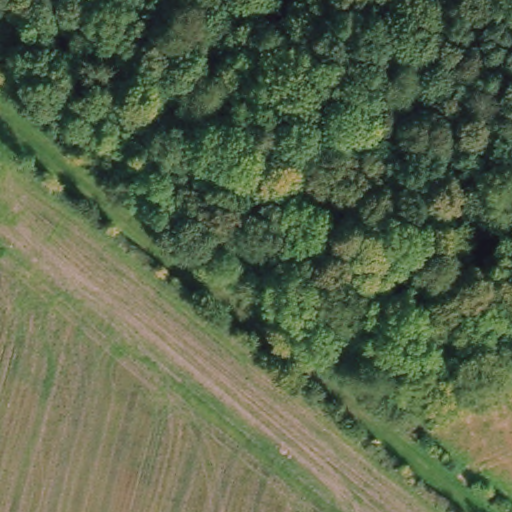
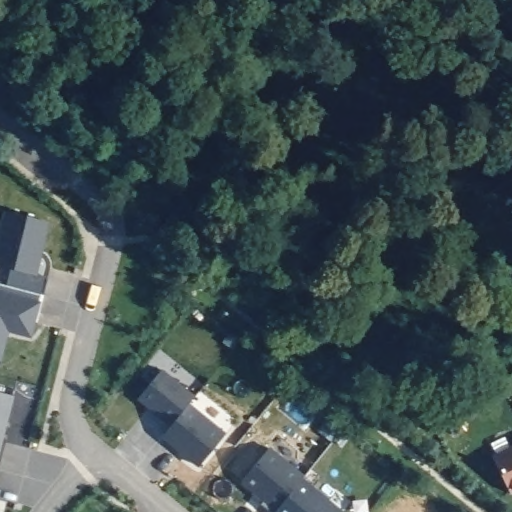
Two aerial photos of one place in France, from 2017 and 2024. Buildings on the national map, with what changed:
new [(42,228),(48,229),(39,269),(32,268),(31,274),(0,267),(0,226),(3,216),(15,214),(44,221),(42,228)]
new [(38,302),(29,335),(3,329),(1,334),(5,335),(0,353),(0,292),(38,302)]
new [(193,396),(170,424),(137,397),(161,369),(193,396)]
new [(12,395),(4,425),(1,424),(0,427),(0,392),(12,395)]
new [(161,435),(187,404),(223,433),(198,464),(184,453),(186,451),(177,444),(176,446),(161,435)]
new [(2,434),(0,440),(0,433),(2,434)]
new [(258,503),(263,498),(241,480),(267,447),(303,475),(301,478),(273,512),(269,512),(258,503)]
new [(493,459),(512,450),(512,494),(511,495),(493,459)]
new [(301,478),(341,511),(340,512),(273,512),(301,478)]

